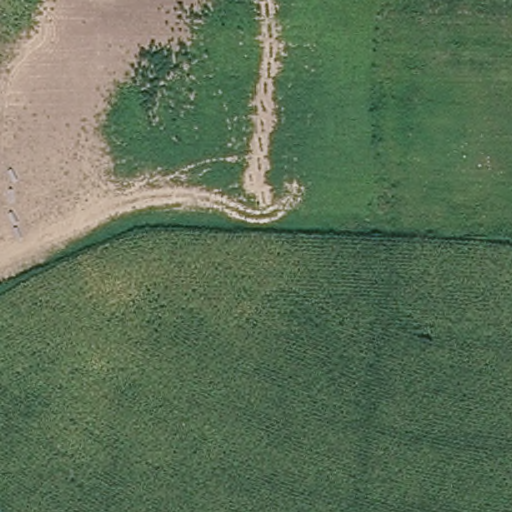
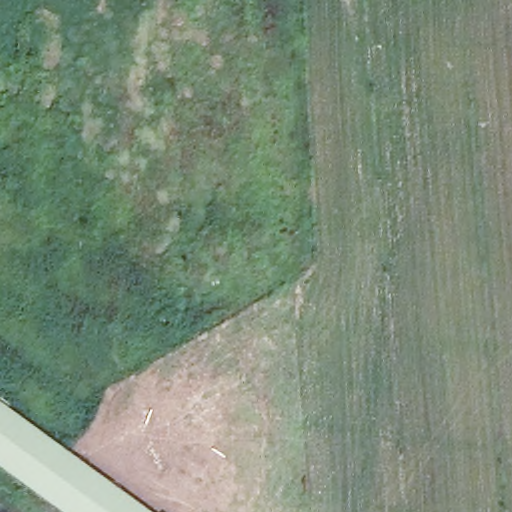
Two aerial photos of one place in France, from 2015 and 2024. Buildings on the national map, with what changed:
new [(0,403),(149,512),(64,512),(0,466),(0,403)]

